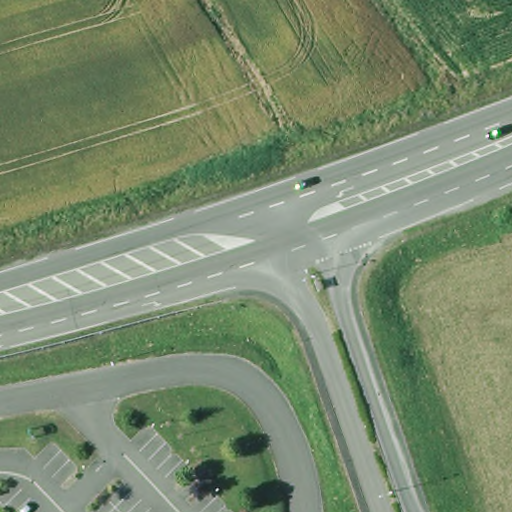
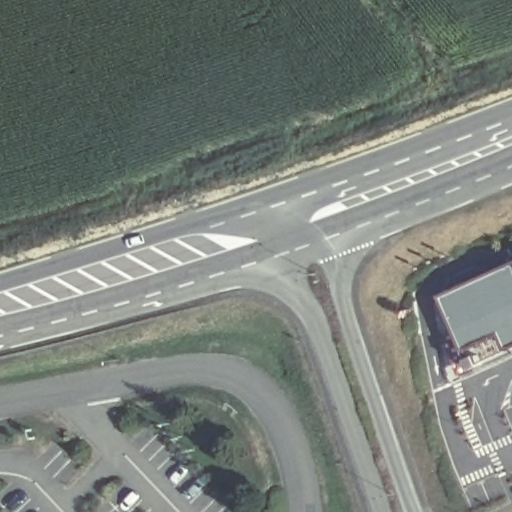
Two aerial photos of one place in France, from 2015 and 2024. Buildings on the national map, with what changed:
new [(512,266),(512,348),(504,335),(470,352),(444,298),(512,266)]

